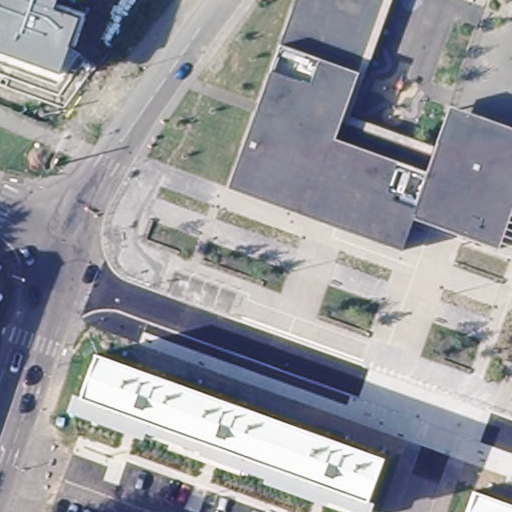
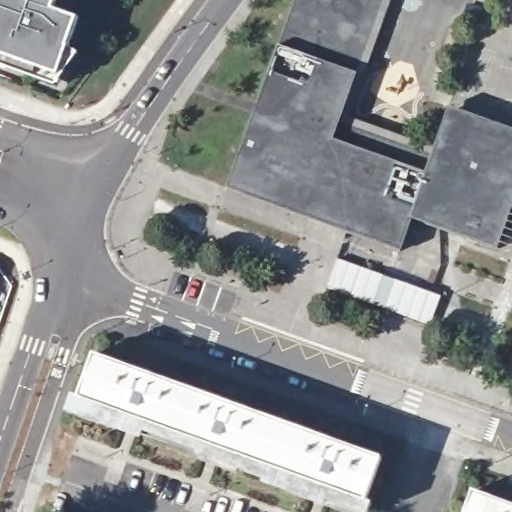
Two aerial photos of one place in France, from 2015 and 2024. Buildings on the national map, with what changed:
unchanged [(54,4),(84,14),(75,45),(68,43),(67,47),(77,53),(57,86),(0,66),(0,0),(55,0),(54,4)]
unchanged [(415,221),(402,254),(229,191),(297,0),(394,0),(352,118),(440,150),(455,109),(512,130),(512,217),(500,252),(415,221)]
new [(329,288),(339,260),(442,297),(431,326),(329,288)]
unchanged [(351,438),(385,450),(369,494),(82,390),(97,347),(143,364),(148,350),(165,357),(161,370),(225,393),(229,380),(246,386),(242,399),(332,432),(337,420),(355,426),(351,438)]
unchanged [(375,496),(370,512),(70,404),(76,388),(82,390),(369,494),(375,496)]
unchanged [(512,495),(512,512),(471,512),(481,484),(512,495)]

